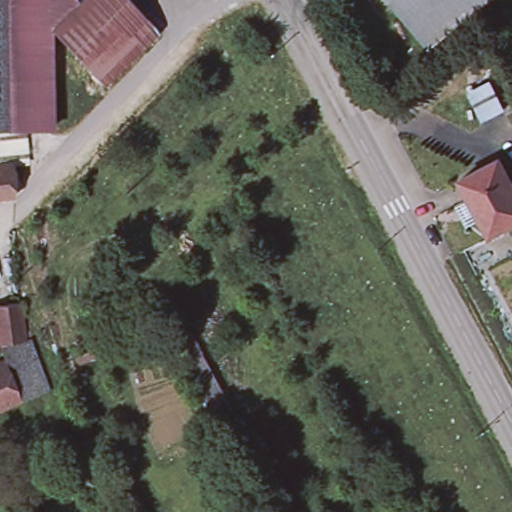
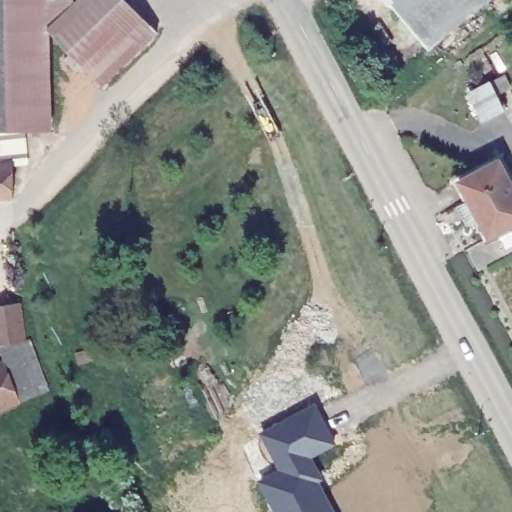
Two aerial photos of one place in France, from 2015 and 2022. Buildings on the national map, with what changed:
unchanged [(0,108),(0,0),(4,0),(6,109),(0,108)]
unchanged [(11,109),(6,109),(4,0),(19,0),(13,49),(11,109)]
unchanged [(19,0),(42,0),(41,6),(31,97),(31,125),(21,125),(23,159),(11,160),(10,127),(11,109),(13,49),(19,0)]
unchanged [(49,125),(31,125),(31,97),(41,6),(42,0),(75,0),(49,24),(49,125)]
unchanged [(102,81),(49,24),(75,0),(132,0),(158,29),(102,81)]
unchanged [(428,52),(384,0),(491,0),(463,23),(428,52)]
unchanged [(490,79),(503,105),(484,114),(471,89),(490,79)]
unchanged [(6,109),(6,127),(0,128),(0,108),(6,109)]
unchanged [(6,127),(10,127),(11,160),(0,161),(0,128),(6,127)]
unchanged [(454,180),(495,159),(506,180),(512,176),(512,223),(486,237),(454,180)]
unchanged [(11,160),(13,192),(0,193),(0,161),(11,160)]
unchanged [(19,303),(25,342),(0,345),(0,306),(19,303)]
unchanged [(25,342),(32,341),(54,388),(21,401),(4,361),(0,351),(0,345),(25,342)]
unchanged [(21,401),(0,410),(0,363),(4,361),(21,401)]
new [(316,403),(336,447),(313,458),(324,481),(318,484),(332,512),(273,512),(258,482),(279,472),(259,434),(316,403)]

